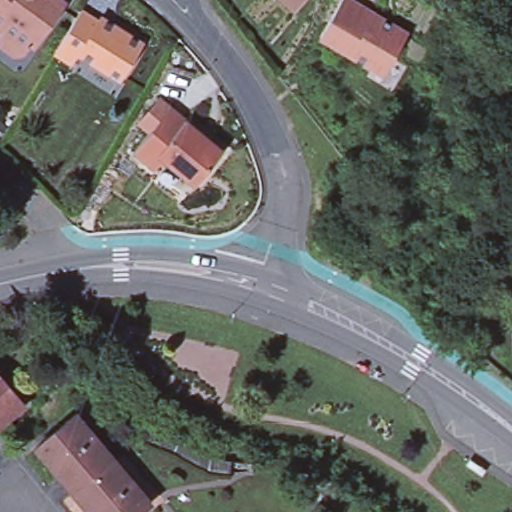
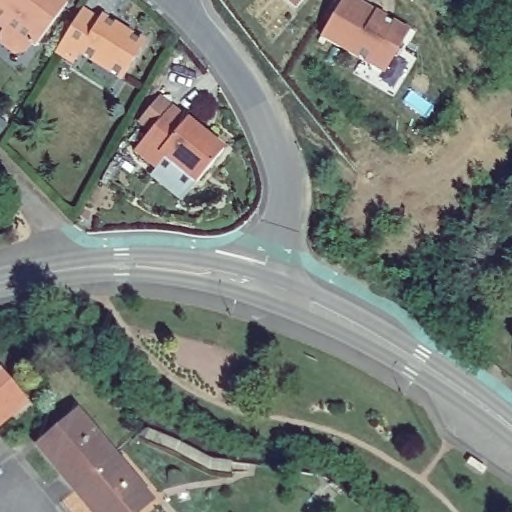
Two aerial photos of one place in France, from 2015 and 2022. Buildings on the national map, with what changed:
unchanged [(47,34),(42,31),(24,55),(12,56),(0,48),(0,34),(3,31),(0,29),(0,0),(63,0),(69,4),(47,34)]
unchanged [(288,0),(302,0),(296,7),(288,0)]
unchanged [(323,38),(345,0),(350,0),(377,16),(375,20),(392,29),(395,26),(410,35),(386,75),(323,38)]
unchanged [(83,11),(102,22),(105,18),(146,45),(123,81),(82,54),(76,63),(58,51),(83,11)]
unchanged [(172,108),(224,151),(197,185),(166,160),(158,169),(136,152),(172,108)]
unchanged [(23,400),(0,420),(0,374),(23,400)]
unchanged [(73,488),(37,443),(76,411),(112,455),(73,488)]
unchanged [(149,499),(133,512),(93,512),(73,488),(112,455),(149,499)]

